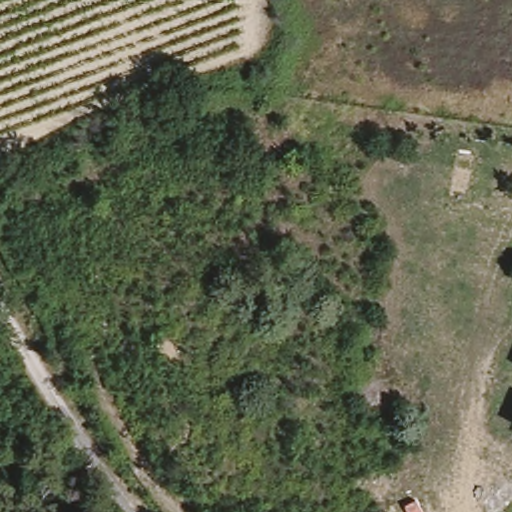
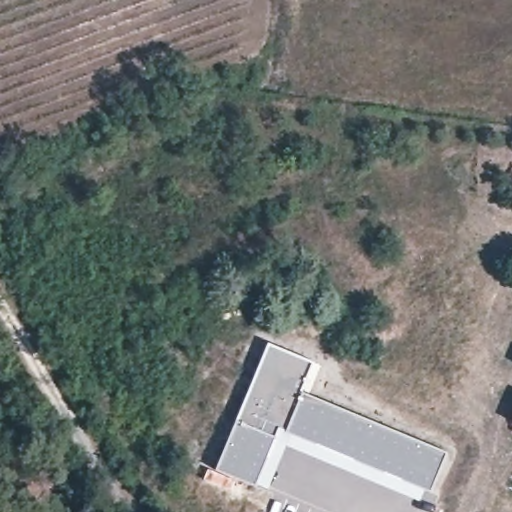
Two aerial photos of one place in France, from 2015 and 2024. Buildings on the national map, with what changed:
new [(313,362),(301,392),(449,452),(432,491),(425,488),(420,501),(287,445),(268,489),(218,469),(269,343),(313,362)]

